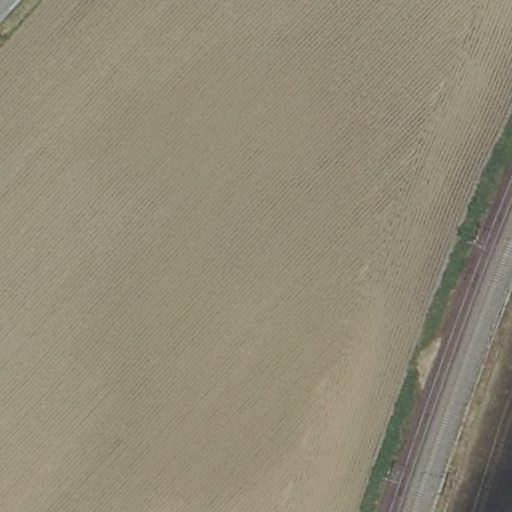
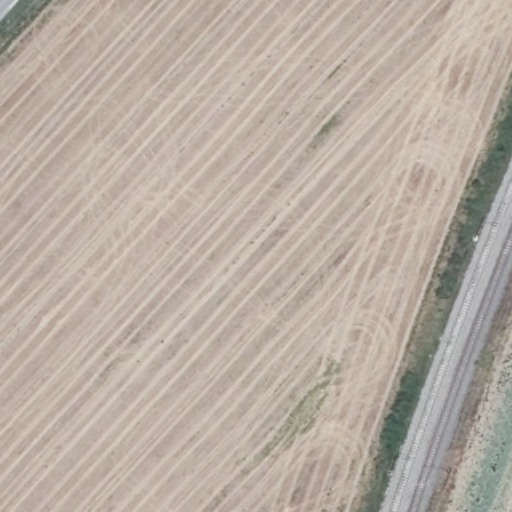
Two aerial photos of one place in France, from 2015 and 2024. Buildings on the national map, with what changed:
[]

